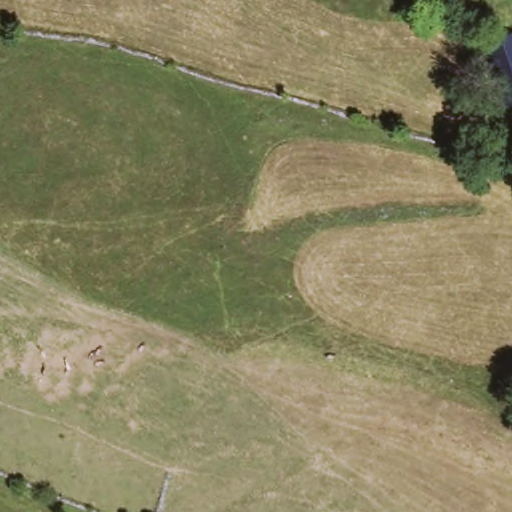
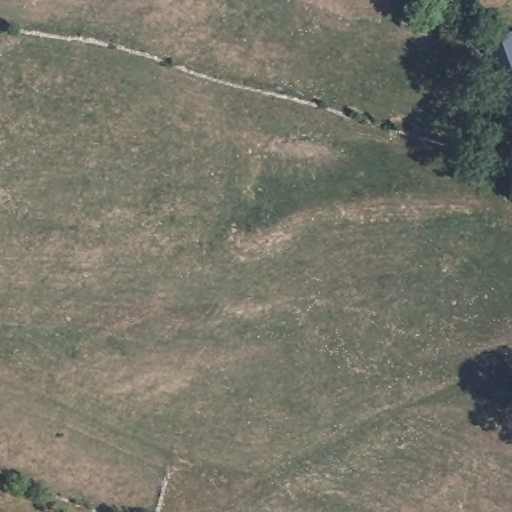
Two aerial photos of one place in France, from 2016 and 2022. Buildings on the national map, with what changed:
unchanged [(512,26),(512,113),(506,115),(476,39),(512,26)]

